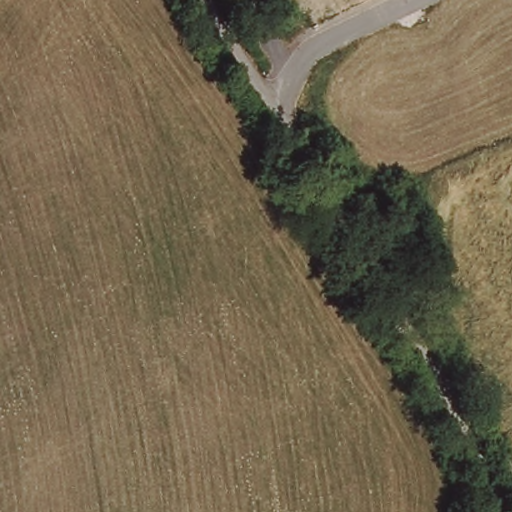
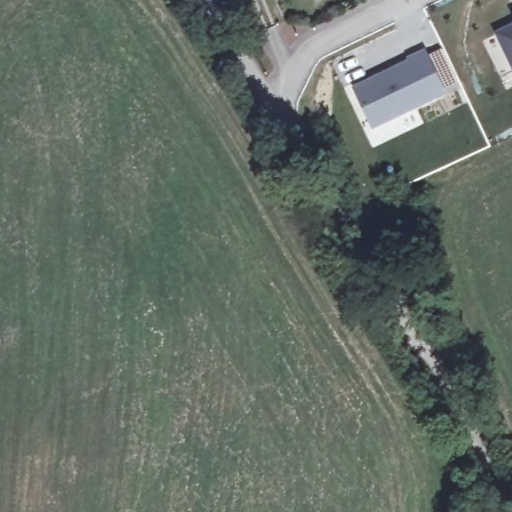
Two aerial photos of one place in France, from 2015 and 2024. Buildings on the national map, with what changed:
new [(510,37),(512,36),(512,42),(510,37)]
new [(425,48),(447,94),(372,129),(351,85),(405,60),(405,57),(425,48)]

